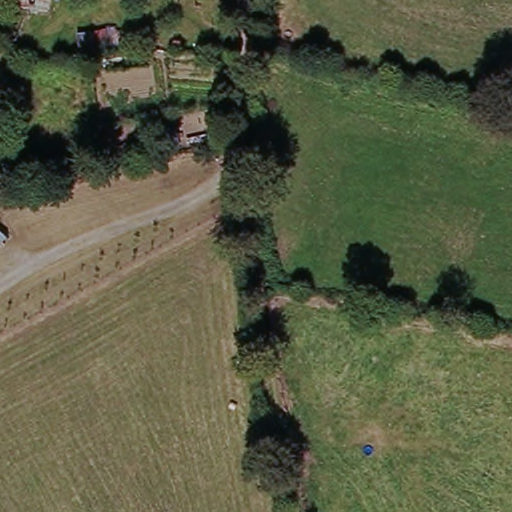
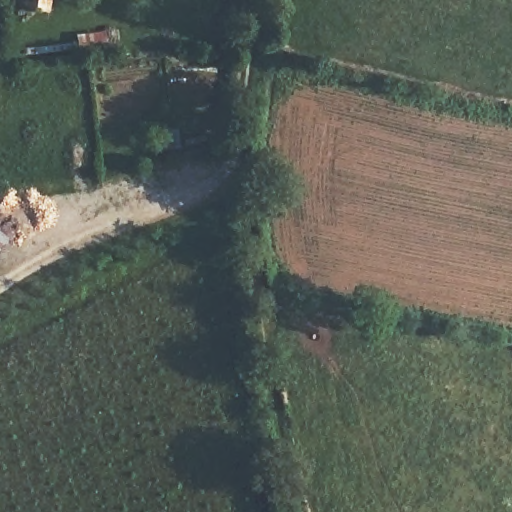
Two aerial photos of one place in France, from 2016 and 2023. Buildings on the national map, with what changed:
unchanged [(10,8),(11,0),(44,0),(43,11),(10,8)]

